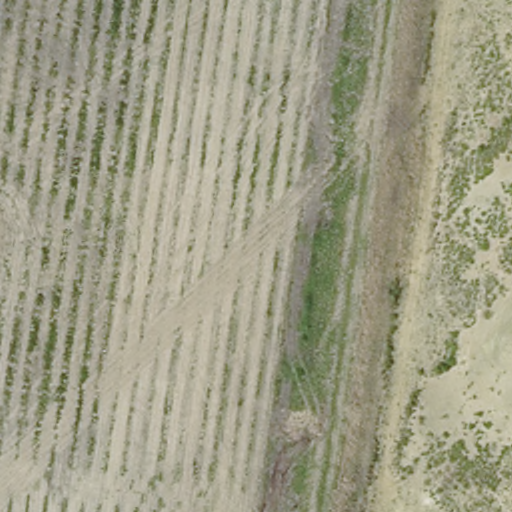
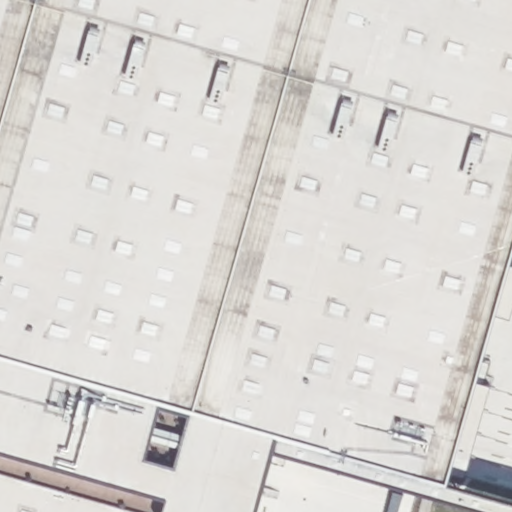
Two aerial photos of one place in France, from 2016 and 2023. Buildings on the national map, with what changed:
new [(253,512),(0,512),(0,0),(512,0),(512,240),(505,264),(512,266),(512,304),(508,319),(490,315),(479,362),(490,365),(485,383),(490,385),(467,462),(449,460),(443,481),(276,428),(253,512)]

